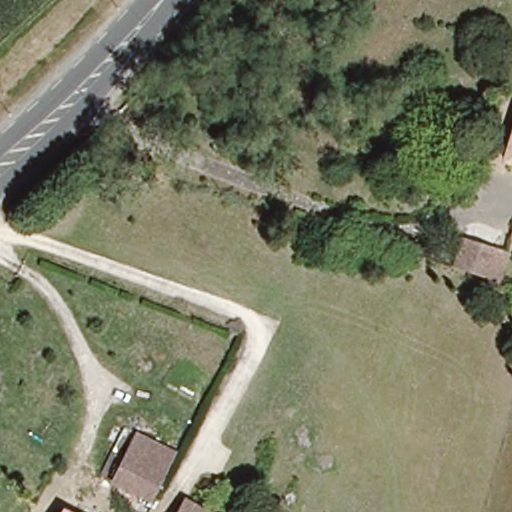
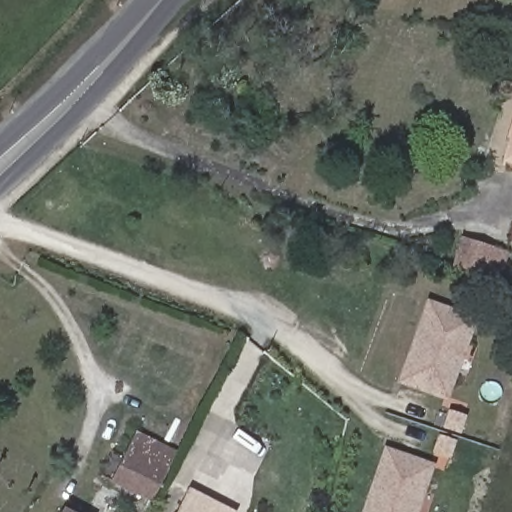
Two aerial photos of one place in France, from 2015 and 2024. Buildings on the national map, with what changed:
unchanged [(512,150),(512,161),(509,160),(512,150)]
unchanged [(494,277),(458,266),(469,236),(502,247),(512,251),(512,255),(502,280),(494,277)]
new [(402,380),(429,308),(470,321),(445,394),(402,380)]
unchanged [(114,478),(138,429),(175,448),(149,495),(114,478)]
new [(367,512),(387,453),(427,467),(412,512),(367,512)]
unchanged [(212,512),(176,512),(183,497),(212,512)]
unchanged [(68,512),(67,512),(67,511),(68,512)]

